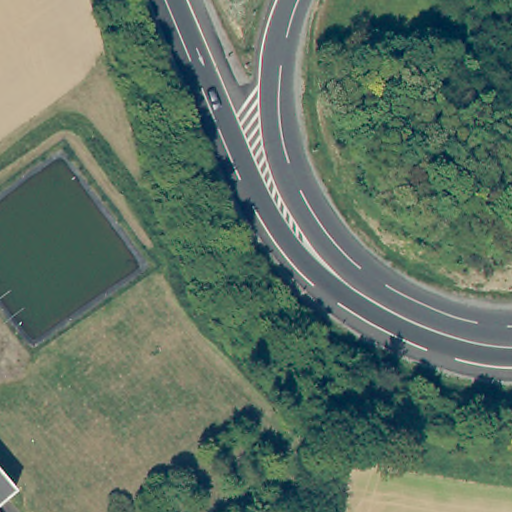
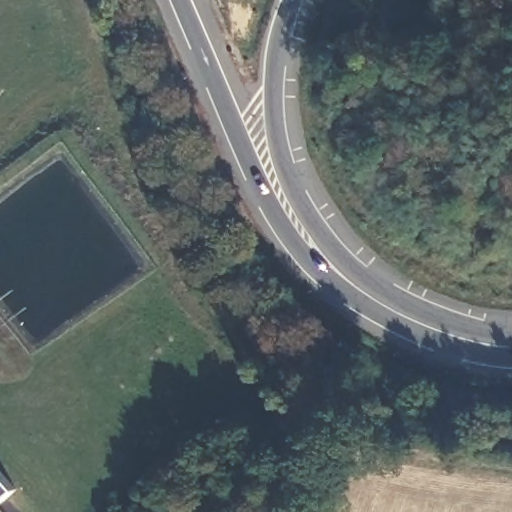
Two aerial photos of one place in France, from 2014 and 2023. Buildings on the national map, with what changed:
unchanged [(6,497),(0,503),(0,473),(15,491),(6,497)]

